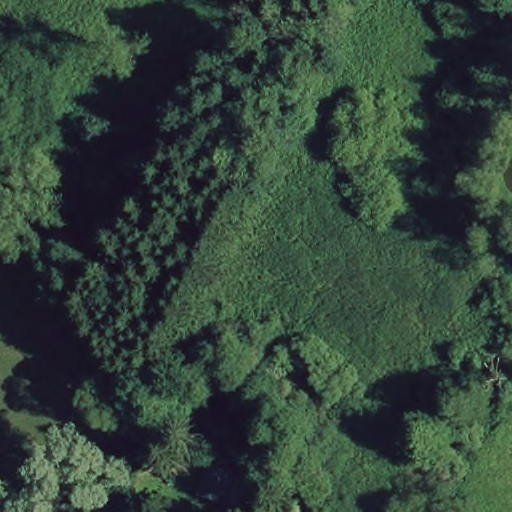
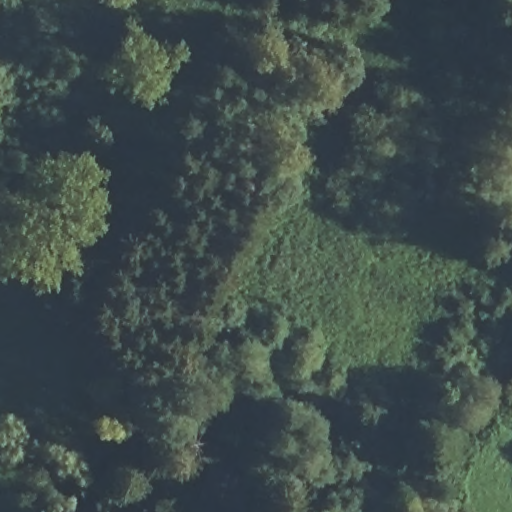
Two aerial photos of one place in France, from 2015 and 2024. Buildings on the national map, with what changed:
unchanged [(204,465),(235,474),(229,508),(196,500),(204,465)]

